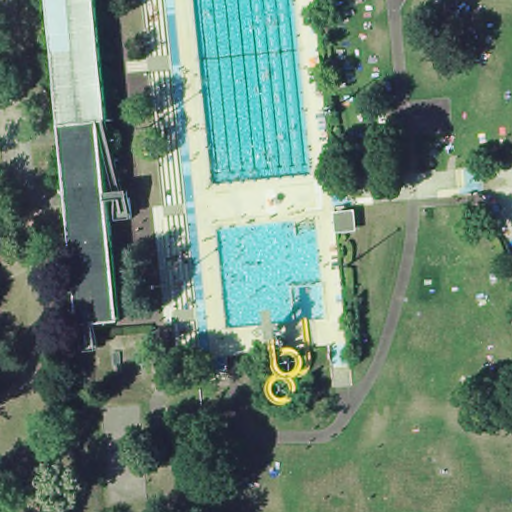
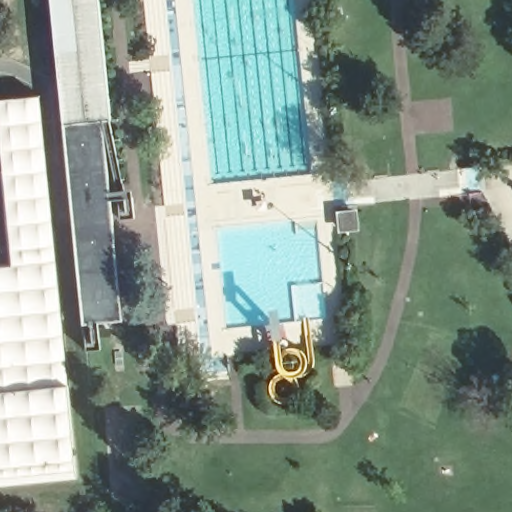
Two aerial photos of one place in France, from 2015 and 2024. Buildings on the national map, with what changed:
unchanged [(97,120),(109,241),(69,245),(65,204),(45,0),(93,0),(105,119),(97,120)]
new [(75,476),(0,484),(0,101),(36,98),(75,476)]
unchanged [(353,215),(355,230),(340,231),(338,216),(353,215)]
unchanged [(109,241),(117,320),(77,324),(69,245),(109,241)]

